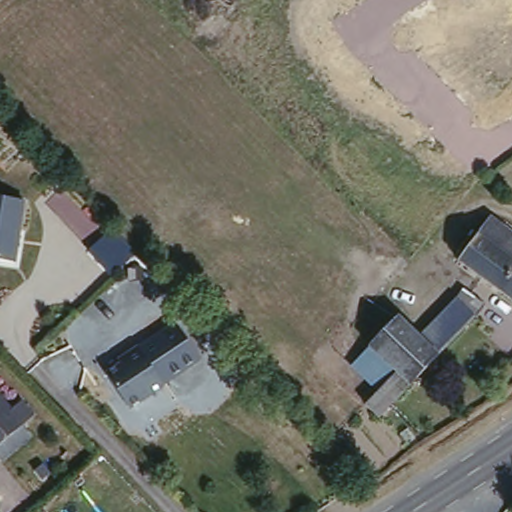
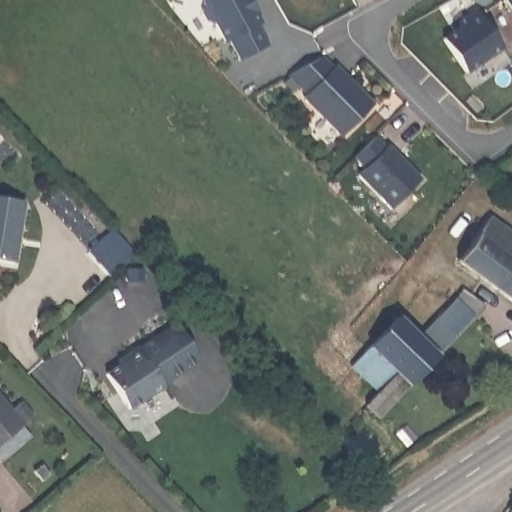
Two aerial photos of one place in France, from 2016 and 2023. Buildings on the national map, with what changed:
new [(255,21),(265,41),(239,55),(228,36),(224,37),(215,20),(206,17),(200,6),(202,0),(252,0),(254,4),(251,5),(258,19),(255,21)]
new [(502,46),(468,70),(446,37),(466,22),(464,20),(479,7),(502,46)]
new [(372,102),(343,132),(302,95),(306,91),(287,73),(318,56),(330,67),(332,64),(372,102)]
new [(375,136),(386,147),(388,145),(422,177),(393,207),(358,174),(365,166),(355,157),(375,136)]
unchanged [(25,197),(14,257),(0,255),(0,193),(25,197)]
unchanged [(512,220),(512,293),(459,253),(495,206),(512,220)]
new [(110,276),(100,263),(87,248),(111,229),(116,233),(136,253),(110,276)]
unchanged [(460,288),(481,306),(441,348),(421,328),(460,288)]
unchanged [(401,308),(441,348),(410,385),(370,343),(401,308)]
unchanged [(201,358),(134,407),(105,370),(172,322),(201,358)]
unchanged [(379,421),(363,403),(373,391),(350,367),(370,343),(410,385),(379,421)]
unchanged [(0,448),(0,397),(4,401),(14,391),(25,405),(15,413),(25,425),(0,448)]

